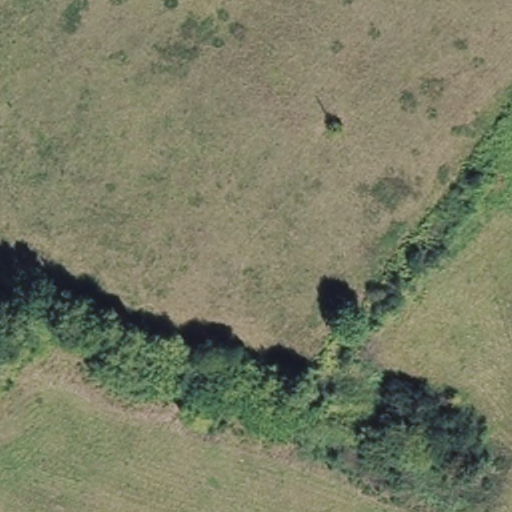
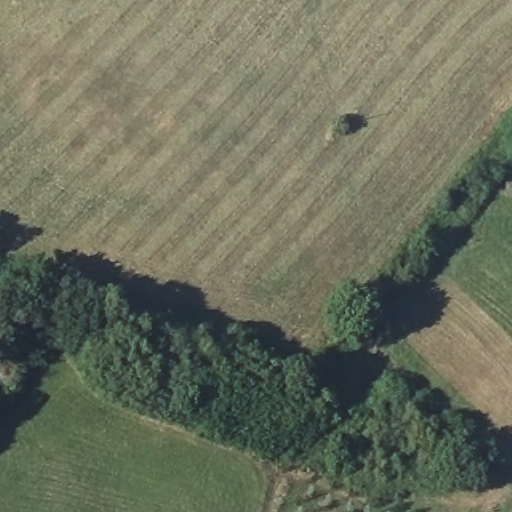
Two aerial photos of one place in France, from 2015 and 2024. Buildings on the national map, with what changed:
[]

